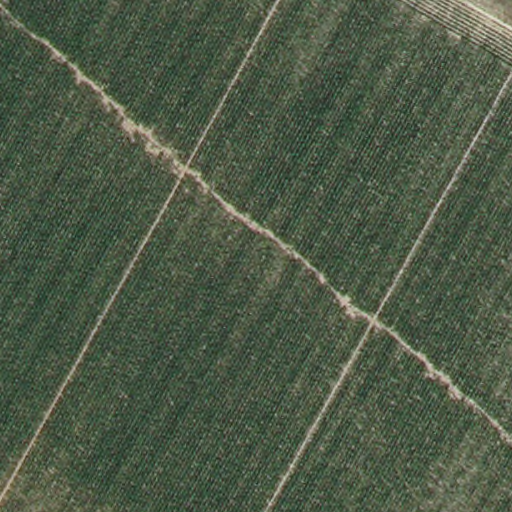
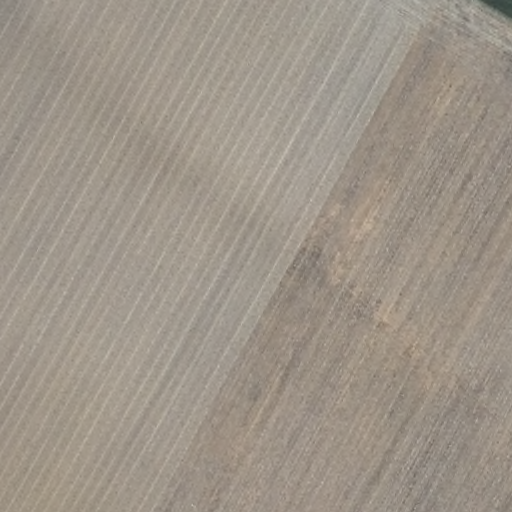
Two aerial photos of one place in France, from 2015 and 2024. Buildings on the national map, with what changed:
[]

